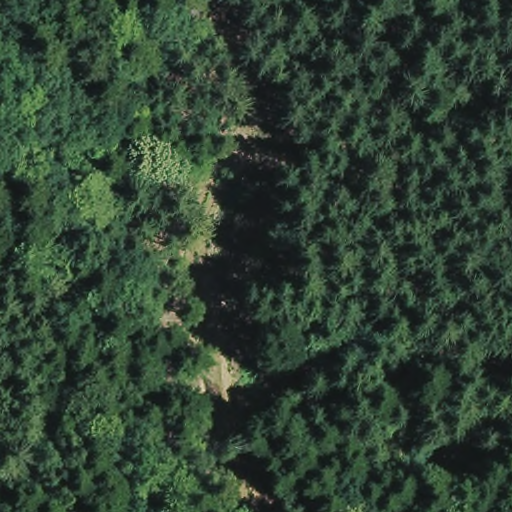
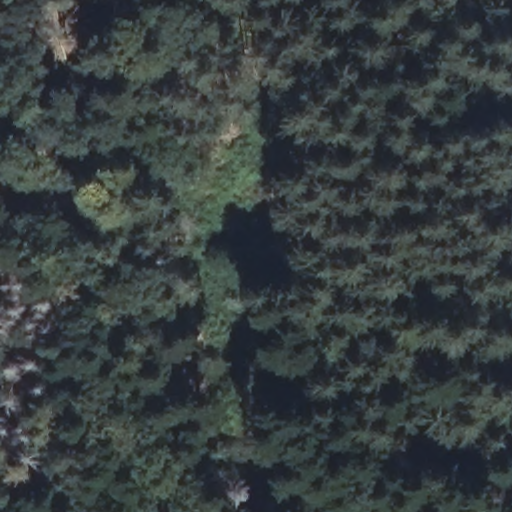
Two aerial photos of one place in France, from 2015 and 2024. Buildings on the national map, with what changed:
[]

